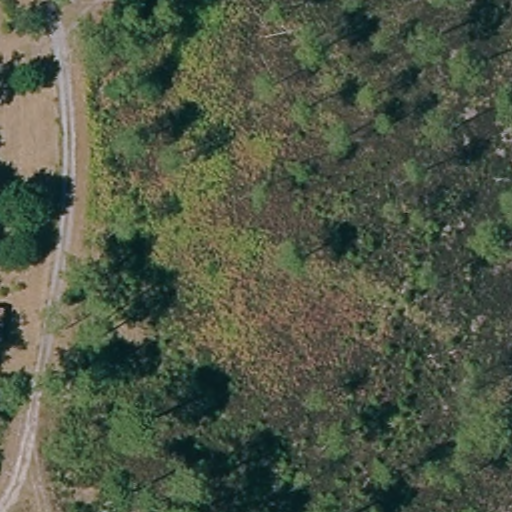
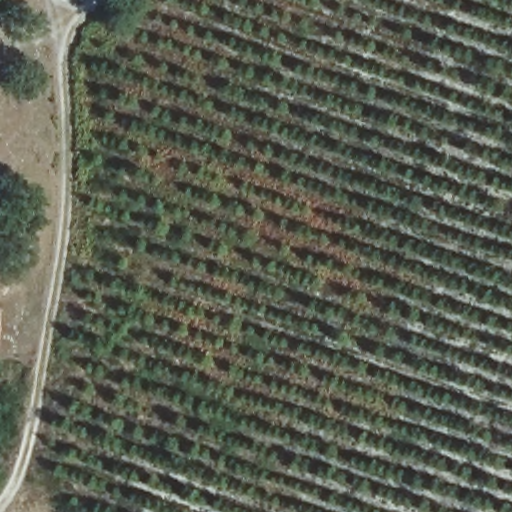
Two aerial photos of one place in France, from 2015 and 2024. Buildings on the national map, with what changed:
unchanged [(4,332),(0,359),(0,332),(4,332)]

